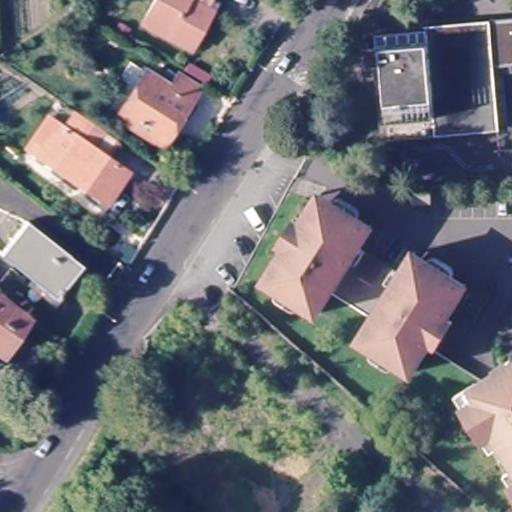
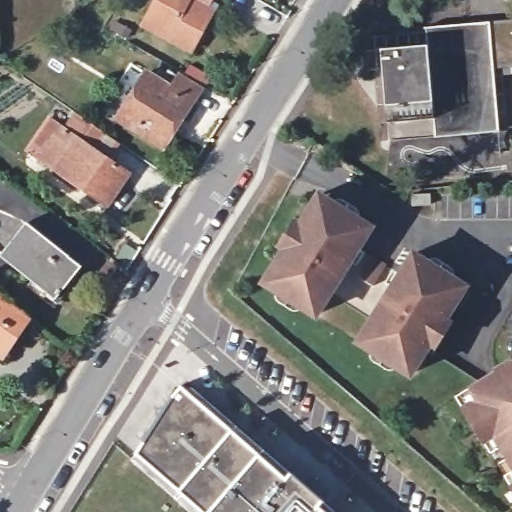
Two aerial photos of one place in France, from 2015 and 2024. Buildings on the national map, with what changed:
unchanged [(212,17),(190,55),(141,30),(158,0),(220,0),(212,17)]
unchanged [(383,68),(372,69),(370,49),(382,47),(381,33),(433,27),(433,25),(512,18),(512,65),(503,66),(508,130),(396,140),(390,140),(383,68)]
unchanged [(191,101),(193,104),(163,147),(116,117),(145,72),(171,88),(179,75),(200,89),(191,101)]
unchanged [(111,207),(31,155),(53,122),(69,132),(80,117),(113,140),(124,148),(113,164),(133,176),(111,207)]
unchanged [(320,320),(267,288),(287,257),(279,252),(298,222),(305,227),(322,199),(374,231),(342,283),(333,298),(320,320)]
unchanged [(432,210),(451,208),(452,219),(433,220),(432,210)]
unchanged [(54,300),(0,258),(0,254),(26,221),(80,265),(54,300)]
unchanged [(412,252),(464,283),(411,373),(358,341),(371,319),(380,305),(412,252)]
unchanged [(358,278),(371,256),(384,265),(368,291),(361,287),(355,283),(358,278)]
unchanged [(0,356),(0,297),(34,322),(6,360),(0,356)]
unchanged [(510,439),(499,445),(465,390),(481,381),(512,362),(512,442),(510,439)]
new [(164,391),(172,396),(181,388),(188,393),(192,388),(240,430),(265,451),(291,473),(335,512),(190,512),(179,501),(133,461),(144,441),(136,436),(164,391)]

